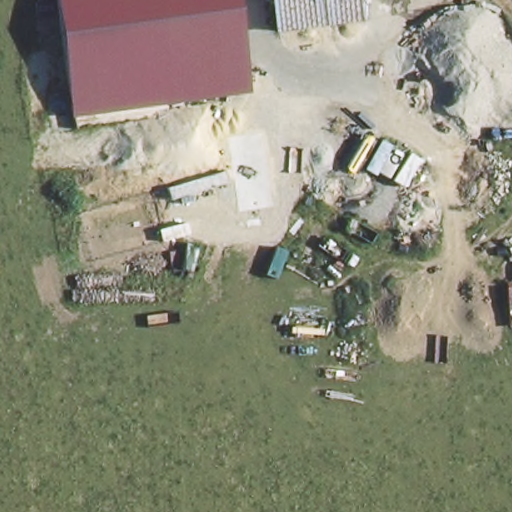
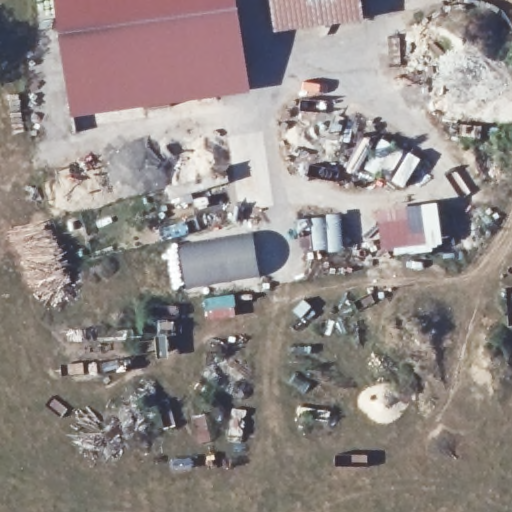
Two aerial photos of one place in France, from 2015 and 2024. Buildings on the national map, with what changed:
unchanged [(252,93),(73,118),(55,0),(239,0),(252,93)]
unchanged [(364,22),(274,27),(269,0),(361,0),(364,22)]
new [(442,241),(382,249),(378,211),(437,202),(442,241)]
new [(259,275),(184,288),(177,243),(254,230),(259,275)]

